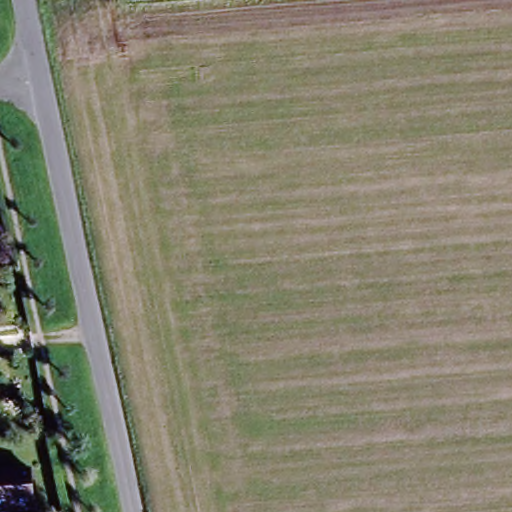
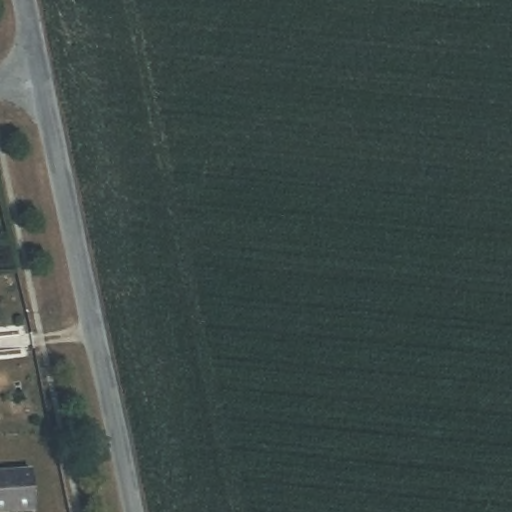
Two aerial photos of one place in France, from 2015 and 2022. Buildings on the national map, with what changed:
unchanged [(28,512),(0,512),(0,476),(26,476),(28,512)]

